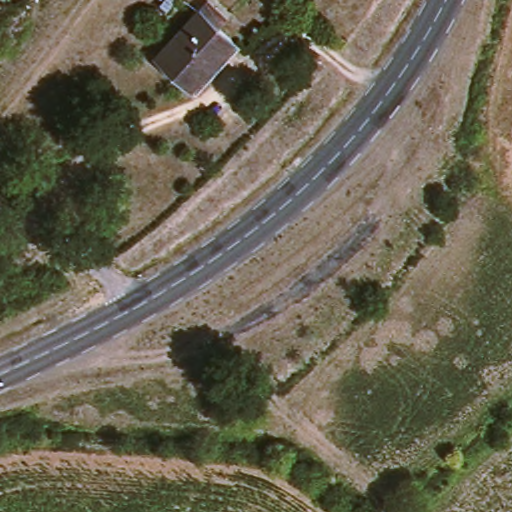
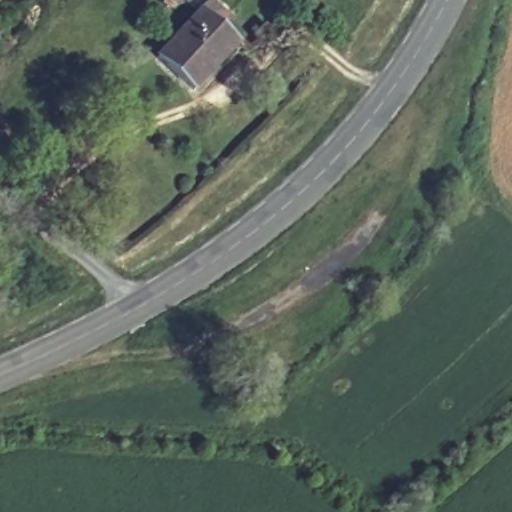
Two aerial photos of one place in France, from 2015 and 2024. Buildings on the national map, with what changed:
unchanged [(193,91),(157,57),(199,11),(204,5),(223,23),(217,29),(235,45),(193,91)]

